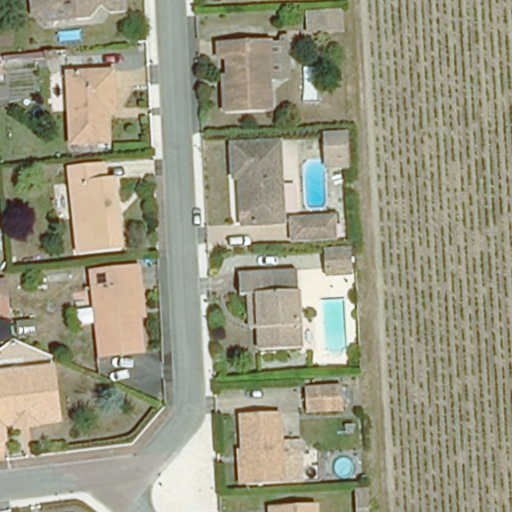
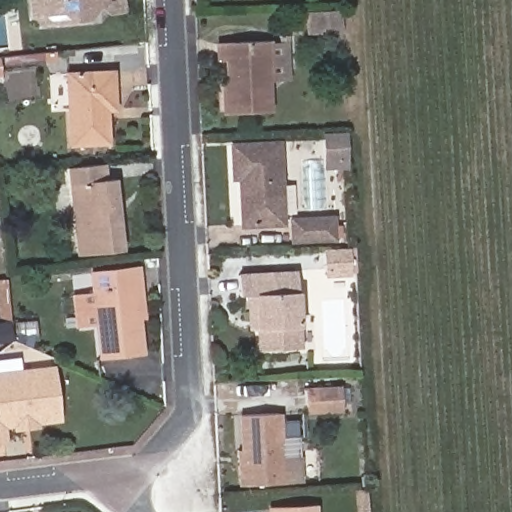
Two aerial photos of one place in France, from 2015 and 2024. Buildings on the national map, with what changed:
unchanged [(21,0),(113,0),(114,12),(99,14),(90,7),(78,20),(65,22),(23,27),(22,16),(21,0)]
unchanged [(326,9),(342,8),(343,28),(320,29),(319,9),(326,9)]
unchanged [(223,69),(222,54),(217,54),(216,37),(264,35),(266,75),(264,75),(264,105),(219,107),(218,81),(218,70),(223,69)]
unchanged [(94,137),(55,141),(51,69),(97,66),(100,105),(91,106),(92,115),(94,137)]
unchanged [(233,166),(227,166),(225,134),(273,132),(276,211),(235,213),(233,166)]
unchanged [(343,134),(344,155),(330,156),(329,134),(343,134)]
unchanged [(122,249),(80,254),(69,167),(104,162),(106,178),(114,177),(118,206),(119,217),(122,249)]
unchanged [(287,227),(286,207),(326,206),(327,225),(287,227)]
unchanged [(356,246),(358,272),(328,274),(327,247),(356,246)]
unchanged [(241,312),(240,288),(232,288),(231,267),(289,266),(292,342),(251,343),(250,322),(242,322),(241,312)]
unchanged [(83,355),(75,271),(122,267),(123,283),(126,313),(120,314),(123,351),(83,355)]
unchanged [(0,281),(10,280),(14,320),(4,317),(0,281)]
unchanged [(16,338),(0,340),(0,321),(14,320),(16,338)]
unchanged [(35,320),(36,333),(19,335),(18,321),(35,320)]
unchanged [(8,428),(7,422),(0,423),(0,372),(45,367),(52,416),(30,418),(31,425),(8,428)]
unchanged [(299,407),(298,387),(333,386),(334,406),(299,407)]
unchanged [(229,447),(235,446),(234,412),(271,411),(273,443),(292,442),(293,450),(294,479),(236,481),(230,481),(229,447)]
unchanged [(368,487),(369,512),(360,512),(358,487),(368,487)]
unchanged [(264,502),(309,500),(309,512),(265,512),(264,502)]

